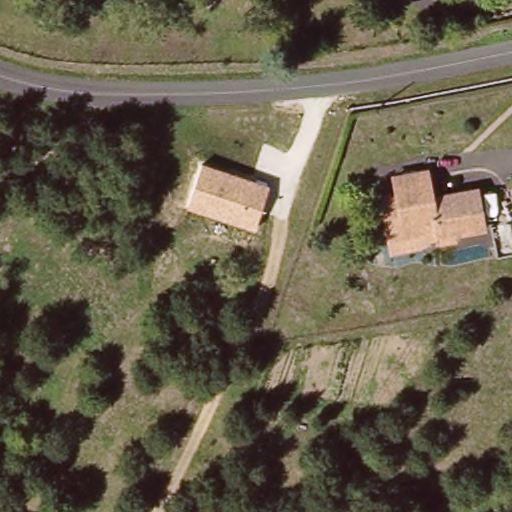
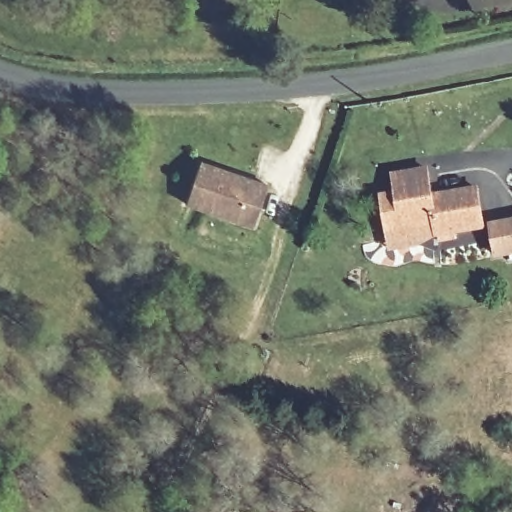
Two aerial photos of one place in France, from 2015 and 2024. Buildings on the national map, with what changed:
unchanged [(256,230),(187,205),(202,162),(270,185),(256,230)]
unchanged [(381,199),(397,197),(395,179),(428,174),(434,197),(477,190),(484,230),(439,237),(438,230),(405,235),(388,237),(381,199)]
new [(512,218),(512,257),(494,260),(488,222),(512,218)]

